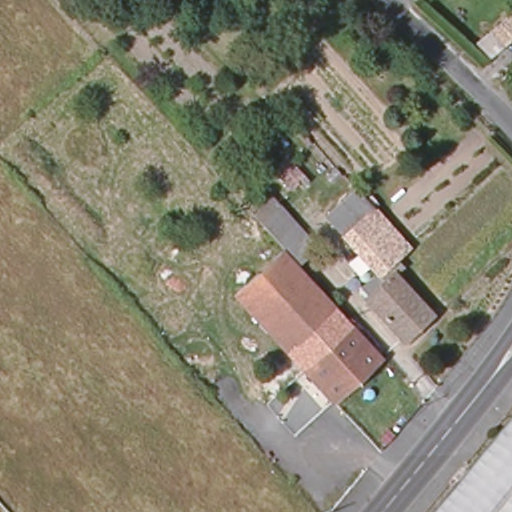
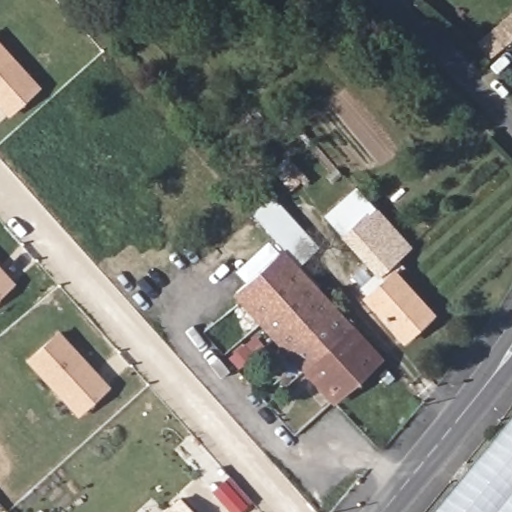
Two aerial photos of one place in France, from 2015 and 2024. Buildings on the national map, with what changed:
unchanged [(493,34),(512,19),(512,44),(508,47),(493,34)]
new [(39,89),(9,116),(0,105),(0,44),(39,89)]
unchanged [(357,284),(373,271),(342,237),(323,218),(342,200),(356,186),(375,206),(391,222),(411,244),(396,257),(404,267),(398,273),(435,312),(402,340),(376,311),(365,298),(369,295),(357,284)]
unchanged [(295,263),(284,251),(269,235),(258,222),(277,207),(288,220),(311,246),(295,263)]
unchanged [(264,267),(276,257),(286,267),(328,313),(287,351),(235,292),(264,267)]
new [(14,285),(0,298),(0,270),(14,285)]
unchanged [(328,313),(344,331),(302,367),(287,351),(328,313)]
unchanged [(344,331),(372,362),(329,398),(302,367),(344,331)]
new [(58,335),(107,387),(78,415),(29,363),(58,335)]
unchanged [(512,421),(512,512),(433,512),(512,421)]
new [(179,499),(192,512),(166,512),(179,499)]

